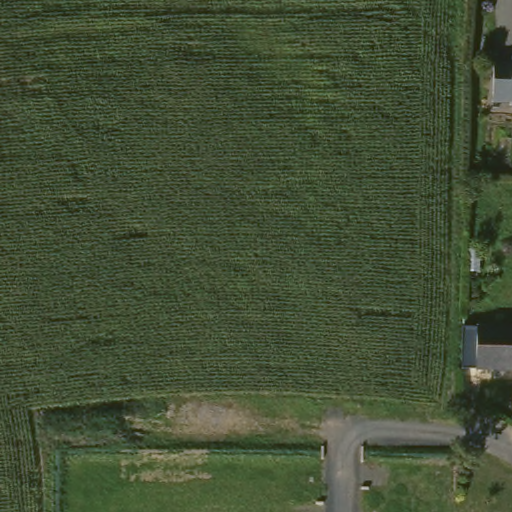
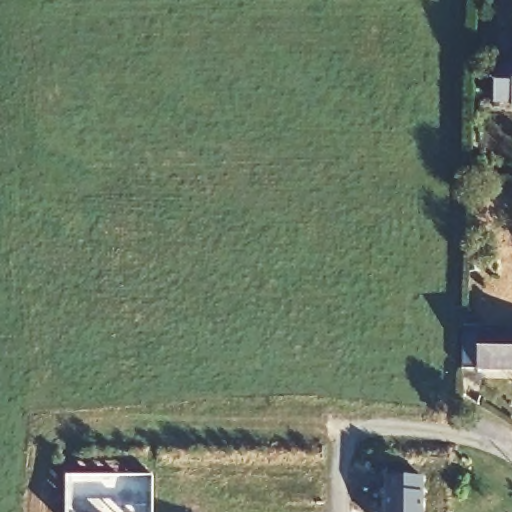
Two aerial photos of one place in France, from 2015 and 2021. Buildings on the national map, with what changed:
unchanged [(497,96),(501,56),(512,58),(512,98),(497,96)]
unchanged [(483,362),(484,325),(512,325),(512,363),(483,362)]
new [(64,473),(152,473),(152,512),(64,512),(64,473)]
new [(387,474),(423,474),(422,512),(387,512),(387,474)]

